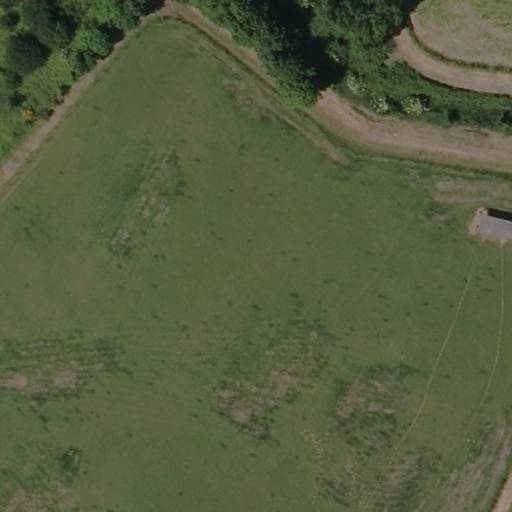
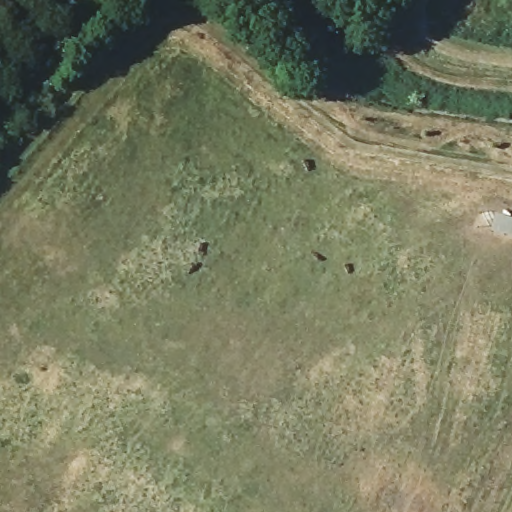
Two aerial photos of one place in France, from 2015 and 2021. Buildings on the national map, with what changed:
unchanged [(480,211),(512,217),(512,242),(475,236),(480,211)]

